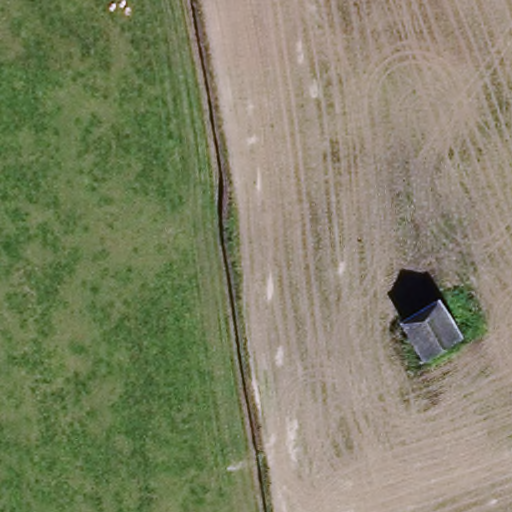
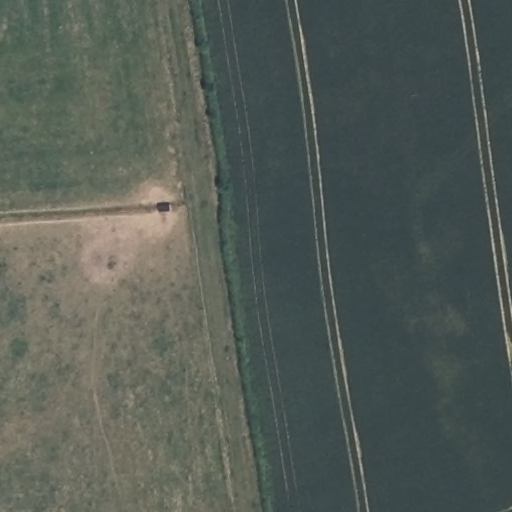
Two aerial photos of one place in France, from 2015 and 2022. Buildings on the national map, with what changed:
demolished [(414,338),(404,322),(440,300),(449,316),(464,338),(429,361),(414,338)]

